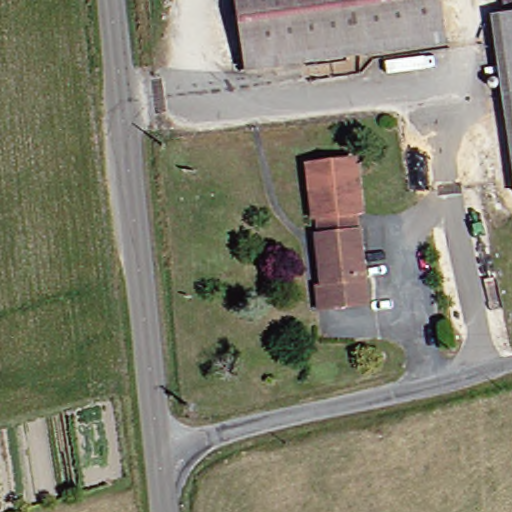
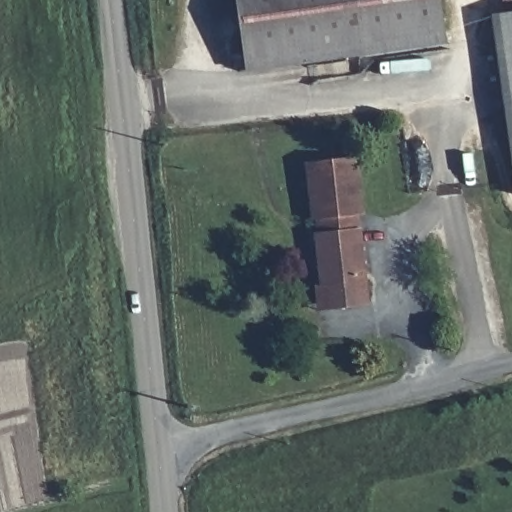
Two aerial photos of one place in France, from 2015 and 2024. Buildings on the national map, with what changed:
unchanged [(439,48),(239,74),(228,0),(433,0),(439,48)]
unchanged [(488,23),(512,19),(512,166),(488,23)]
unchanged [(324,307),(314,235),(316,234),(315,218),(310,217),(301,161),(348,153),(355,211),(342,212),(346,230),(355,227),(369,299),(324,307)]

